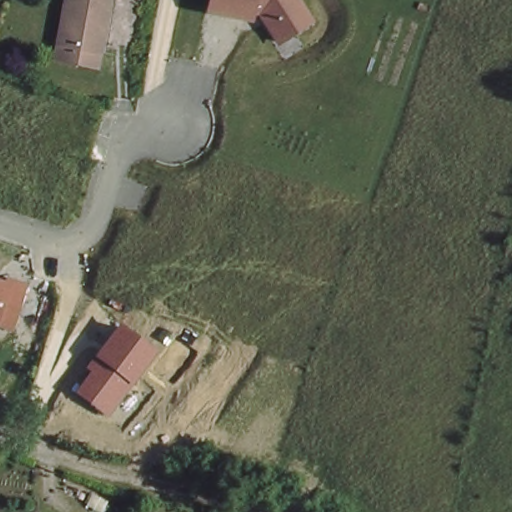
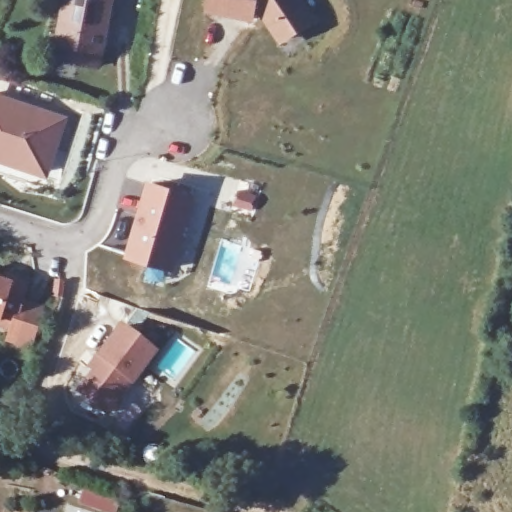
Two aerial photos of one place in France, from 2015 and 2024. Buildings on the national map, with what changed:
unchanged [(52,64),(56,47),(66,0),(109,0),(98,56),(94,74),(75,70),(52,64)]
unchanged [(282,46),(263,18),(257,16),(257,22),(207,12),(210,0),(305,0),(320,22),(282,46)]
new [(48,179),(0,164),(0,94),(68,118),(48,179)]
new [(172,272),(124,257),(149,180),(195,195),(172,272)]
unchanged [(6,282),(8,278),(29,284),(16,330),(0,326),(0,281),(6,282)]
unchanged [(158,351),(108,416),(77,392),(91,372),(86,368),(120,323),(158,351)]

